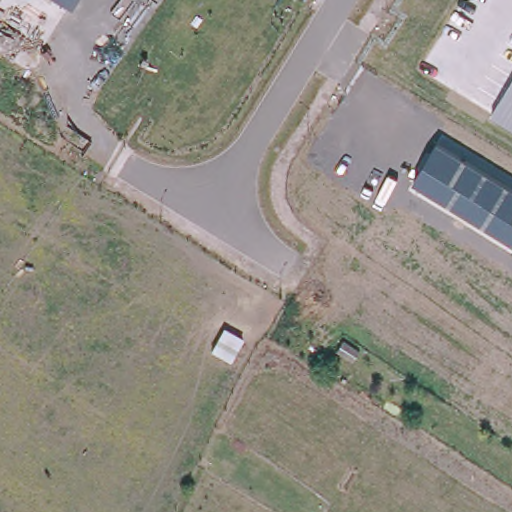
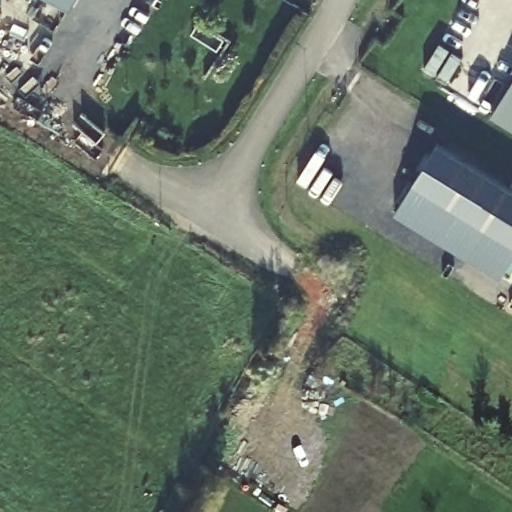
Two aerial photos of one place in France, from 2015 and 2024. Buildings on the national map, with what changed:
unchanged [(71,7),(58,0),(75,0),(71,7)]
unchanged [(491,117),(512,83),(512,129),(491,117)]
unchanged [(512,188),(512,244),(414,184),(440,142),(512,188)]
new [(502,281),(395,214),(414,184),(512,244),(512,264),(502,281)]

